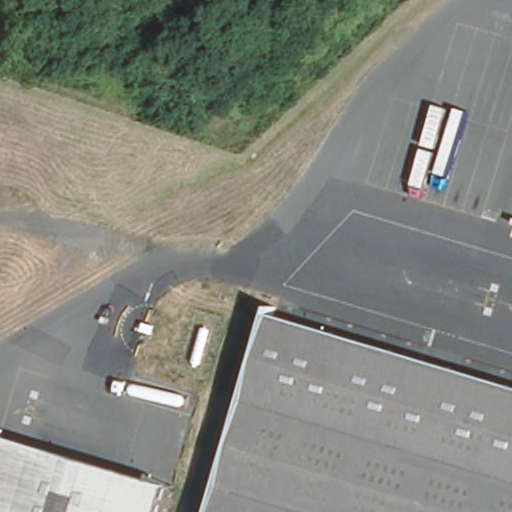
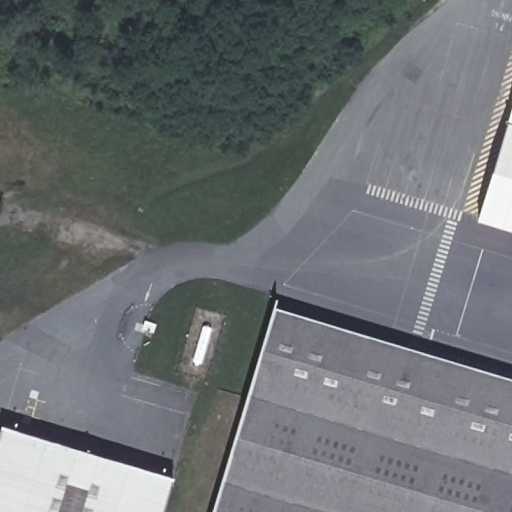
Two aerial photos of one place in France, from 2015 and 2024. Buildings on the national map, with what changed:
new [(476,219),(512,107),(512,230),(476,219)]
unchanged [(270,312),(409,353),(512,384),(512,512),(213,512),(243,415),(270,312)]
unchanged [(0,512),(0,431),(1,428),(134,467),(166,478),(156,512),(0,512)]

